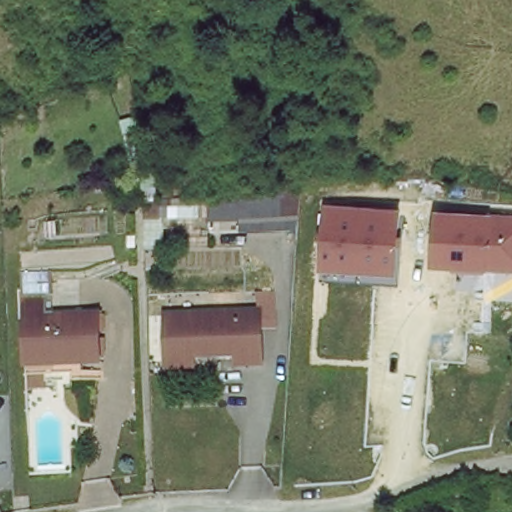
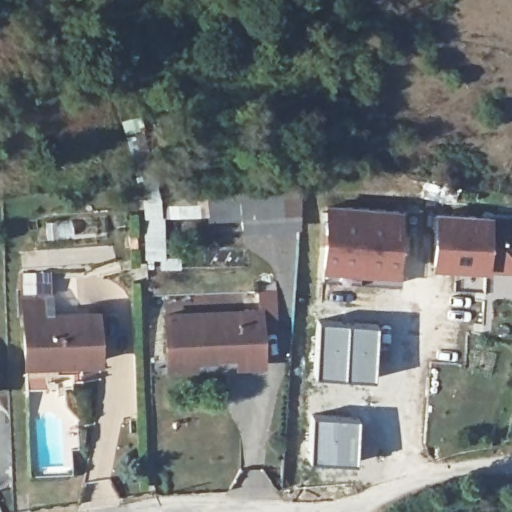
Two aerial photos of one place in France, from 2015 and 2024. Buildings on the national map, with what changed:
unchanged [(237,237),(236,201),(292,199),(293,233),(237,237)]
unchanged [(324,206),(400,209),(396,274),(322,270),(324,206)]
unchanged [(493,216),(512,217),(512,272),(487,270),(431,268),(433,213),(493,216)]
unchanged [(151,220),(167,220),(169,254),(154,255),(151,220)]
unchanged [(29,356),(28,298),(49,299),(49,317),(103,320),(103,367),(56,367),(29,367),(29,356)]
unchanged [(173,373),(172,365),(169,321),(265,316),(268,365),(242,368),(241,362),(198,364),(198,373),(173,373)]
new [(316,318),(377,322),(373,378),(312,375),(316,318)]
new [(310,414),(358,416),(356,462),(308,460),(310,414)]

